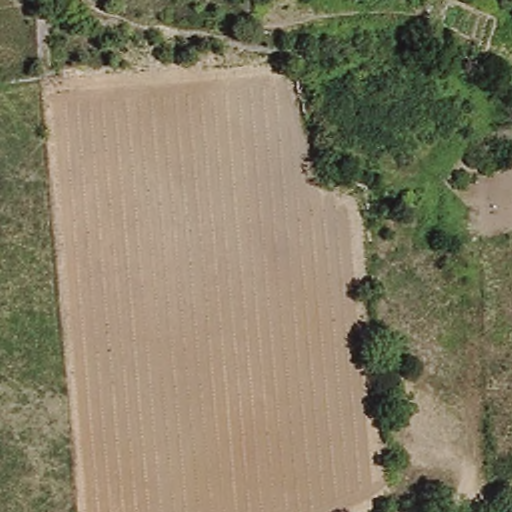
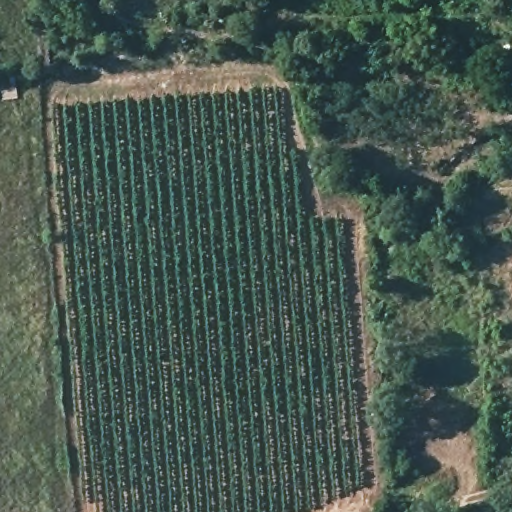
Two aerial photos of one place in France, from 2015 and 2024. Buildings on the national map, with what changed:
unchanged [(311,155),(336,165),(335,173),(322,176),(313,176),(311,155)]

